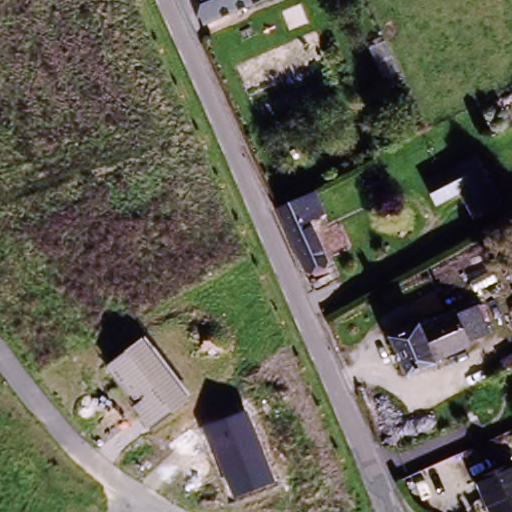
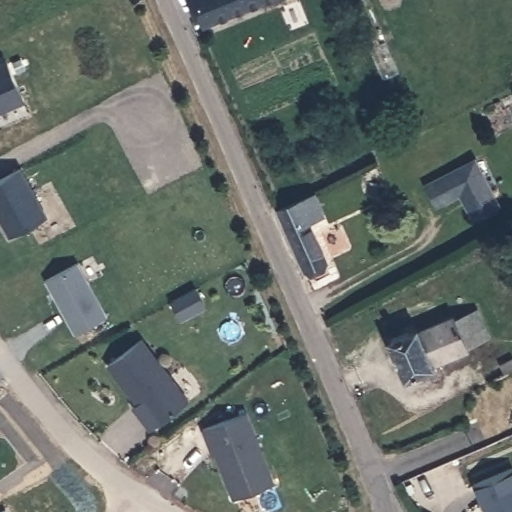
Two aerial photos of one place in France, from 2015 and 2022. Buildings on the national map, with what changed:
unchanged [(191,0),(257,0),(201,24),(191,0)]
new [(21,101),(0,111),(0,65),(3,63),(21,101)]
unchanged [(479,215),(463,187),(439,201),(429,185),(476,157),(502,202),(479,215)]
new [(46,216),(10,236),(0,217),(0,177),(20,167),(46,216)]
unchanged [(326,258),(304,268),(279,209),(314,191),(323,210),(307,218),(326,258)]
new [(75,262),(105,316),(73,333),(43,280),(75,262)]
new [(196,287),(206,306),(181,319),(171,301),(196,287)]
unchanged [(452,313),(473,303),(484,330),(466,338),(468,342),(434,358),(436,361),(404,376),(385,337),(414,322),(416,326),(449,310),(452,313)]
unchanged [(190,399),(148,428),(106,368),(144,337),(190,399)]
unchanged [(504,373),(501,366),(512,361),(512,370),(504,373)]
unchanged [(274,481),(234,498),(207,427),(248,412),(274,481)]
unchanged [(512,461),(512,512),(492,512),(477,477),(512,461)]

